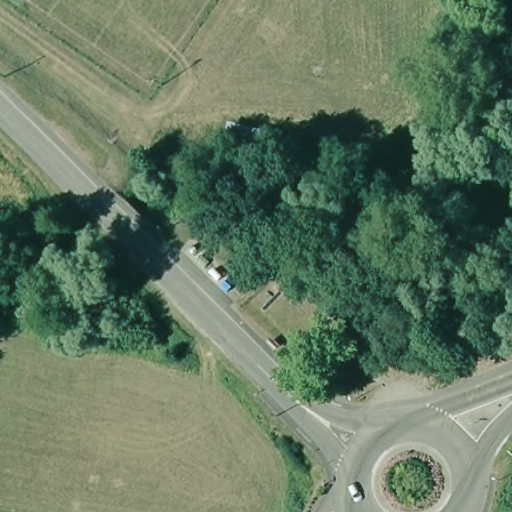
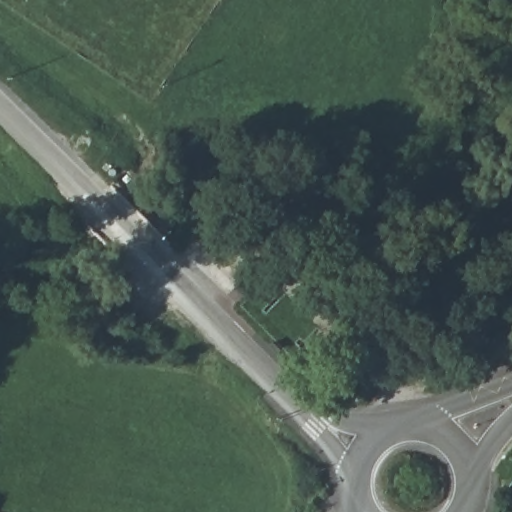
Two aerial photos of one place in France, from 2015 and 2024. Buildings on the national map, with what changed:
unchanged [(273,135),(270,158),(225,149),(230,127),(273,135)]

